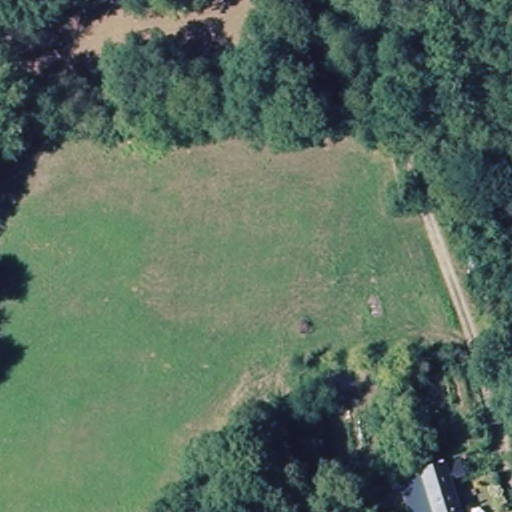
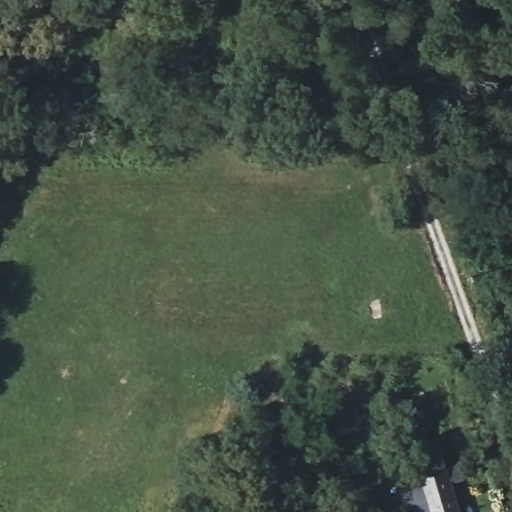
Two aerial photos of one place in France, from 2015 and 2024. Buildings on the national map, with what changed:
unchanged [(445,470),(468,463),(472,477),(450,484),(460,512),(411,512),(403,484),(445,470)]

